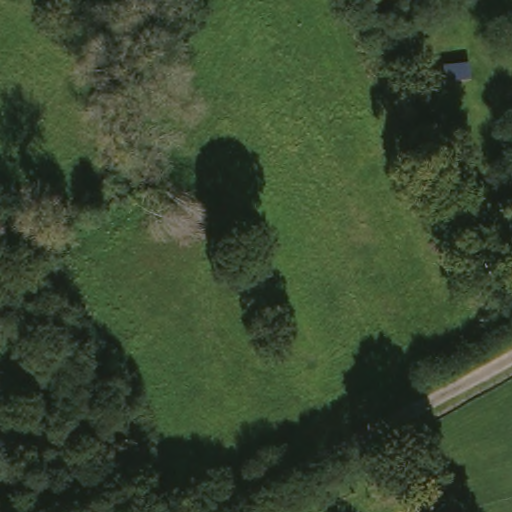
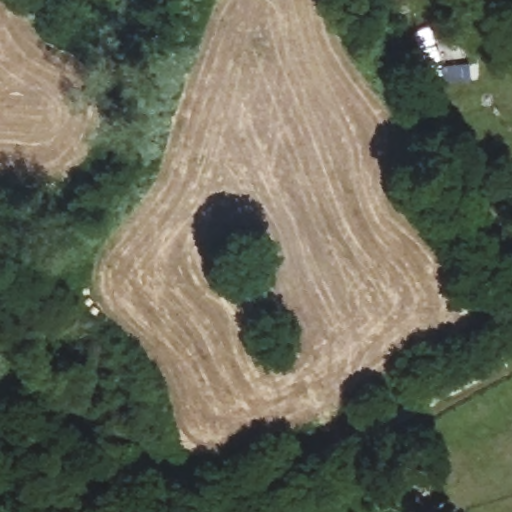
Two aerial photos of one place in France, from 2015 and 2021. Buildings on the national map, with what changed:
unchanged [(61,512),(43,512),(41,508),(55,501),(61,512)]

